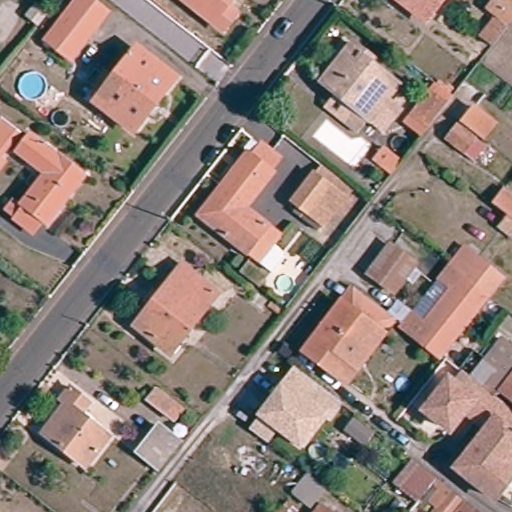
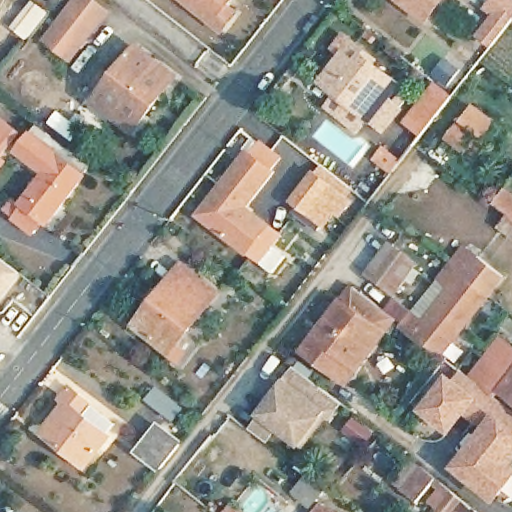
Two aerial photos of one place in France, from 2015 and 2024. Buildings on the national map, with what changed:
unchanged [(48,40),(82,0),(88,0),(110,15),(73,59),(48,40)]
unchanged [(225,9),(234,17),(219,35),(176,0),(231,0),(225,9)]
unchanged [(396,0),(440,0),(423,21),(396,0)]
unchanged [(494,49),(486,40),(503,18),(492,9),(499,0),(512,0),(512,26),(494,49)]
unchanged [(37,5),(49,14),(40,26),(28,16),(37,5)]
unchanged [(393,119),(381,134),(317,88),(351,43),(366,53),(362,60),(395,87),(380,109),(393,119)]
unchanged [(97,100),(105,92),(97,85),(108,72),(116,79),(141,50),(175,79),(132,130),(97,100)]
unchanged [(440,87),(457,101),(451,110),(432,134),(413,120),(440,87)]
unchanged [(468,124),(482,106),(505,123),(490,141),(468,124)]
unchanged [(0,149),(0,120),(4,116),(16,128),(0,149)]
unchanged [(458,123),(487,146),(473,162),(446,140),(458,123)]
unchanged [(51,207),(33,230),(16,217),(27,200),(25,198),(51,164),(47,161),(42,166),(17,147),(31,129),(86,173),(56,211),(51,207)]
unchanged [(260,262),(200,214),(244,158),(247,161),(264,141),(283,156),(275,167),(276,168),(242,212),(277,240),(260,262)]
unchanged [(396,154),(408,164),(396,179),(384,170),(396,154)]
unchanged [(340,215),(335,211),(319,231),(293,210),(297,206),(290,200),(313,172),(350,202),(340,215)]
unchanged [(501,205),(512,191),(512,214),(501,205)]
unchanged [(512,219),(512,237),(503,230),(512,219)]
unchanged [(367,277),(389,250),(409,266),(388,293),(367,277)]
unchanged [(392,332),(438,272),(452,254),(475,270),(489,281),(475,301),(428,360),(415,349),(393,332),(392,332)]
new [(0,300),(0,259),(20,275),(0,300)]
unchanged [(132,323),(181,265),(213,293),(167,349),(132,323)]
unchanged [(345,393),(307,362),(355,302),(392,332),(393,332),(380,348),(357,376),(345,393)]
unchanged [(500,388),(493,396),(482,388),(497,369),(482,359),(500,337),(512,347),(512,397),(500,388)]
unchanged [(493,501),(466,479),(471,473),(459,464),(486,430),(463,412),(447,431),(422,411),(447,381),(443,377),(452,365),(462,372),(482,388),(493,396),(512,411),(512,457),(506,466),(512,471),(512,477),(493,501)]
unchanged [(251,428),(262,414),(297,370),(308,379),(336,400),(343,406),(332,421),(327,418),(304,448),(280,429),(269,442),(251,428)]
unchanged [(172,415),(152,398),(160,387),(182,405),(172,415)]
unchanged [(40,440),(63,412),(55,405),(65,394),(88,412),(79,423),(106,444),(82,474),(40,440)]
unchanged [(357,417),(361,420),(348,433),(356,439),(348,448),(335,438),(353,414),(357,417)]
unchanged [(139,447),(160,421),(181,439),(161,465),(139,447)]
unchanged [(416,464),(436,480),(417,503),(397,487),(416,464)]
unchanged [(320,506),(301,490),(312,476),(322,485),(332,492),(320,506)]
unchanged [(472,512),(432,512),(448,493),(472,512)]
unchanged [(337,512),(319,512),(326,504),(337,512)]
unchanged [(408,512),(402,512),(404,509),(408,512)]

